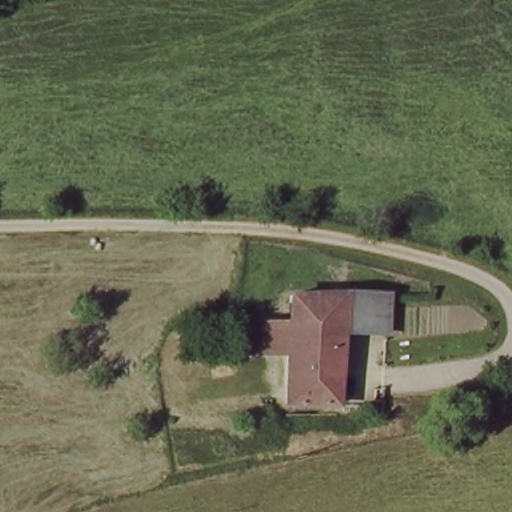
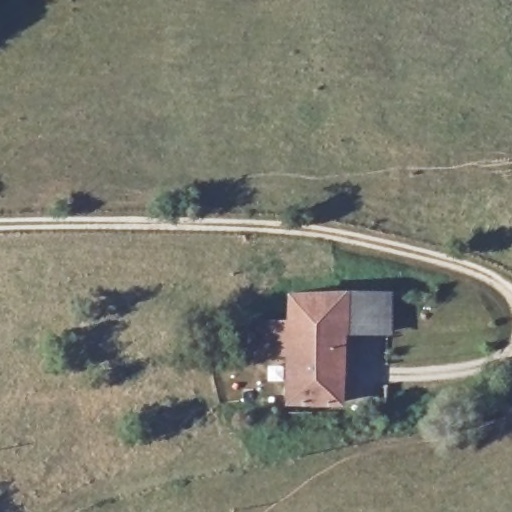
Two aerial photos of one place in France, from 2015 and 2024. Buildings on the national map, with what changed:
unchanged [(338,401),(286,400),(286,354),(287,321),(287,292),(339,290),(339,337),(338,401)]
unchanged [(387,292),(387,337),(339,337),(339,290),(387,292)]
unchanged [(286,354),(247,353),(248,321),(287,321),(286,354)]

